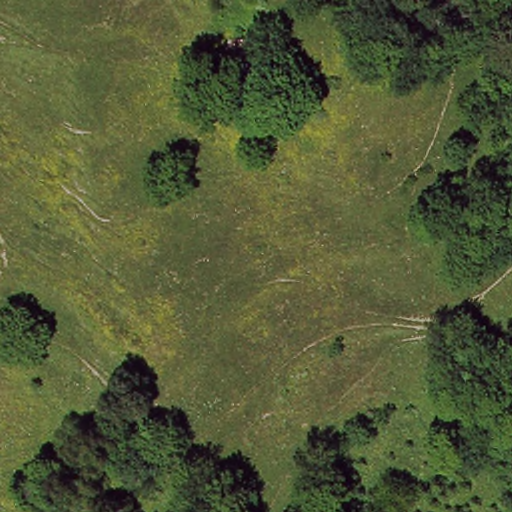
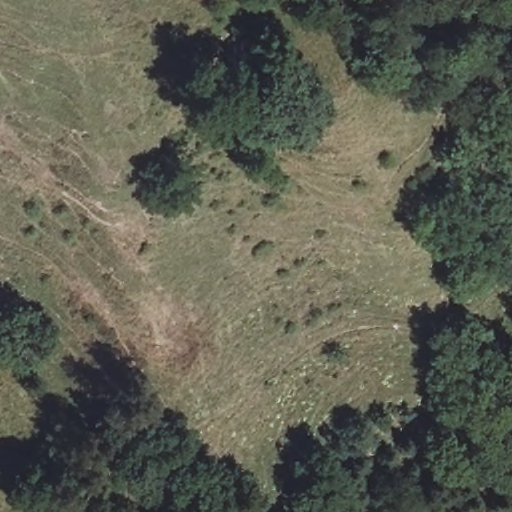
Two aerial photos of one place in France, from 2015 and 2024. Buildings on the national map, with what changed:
unchanged [(240,36),(242,72),(212,72),(210,36),(240,36)]

